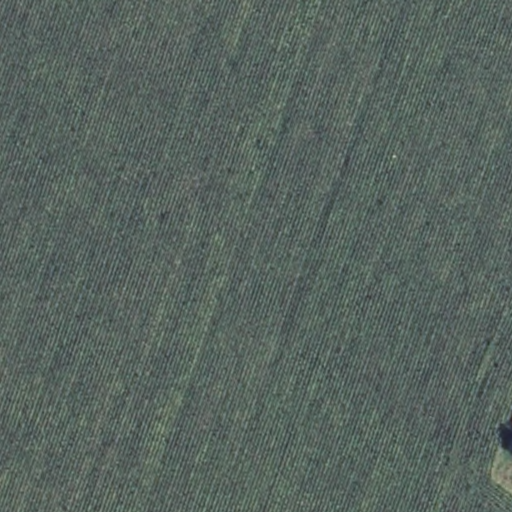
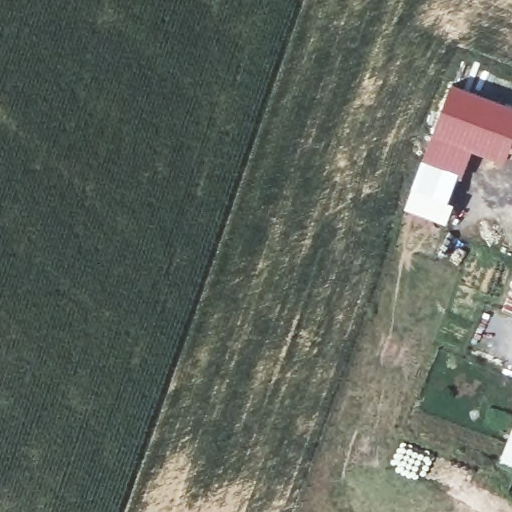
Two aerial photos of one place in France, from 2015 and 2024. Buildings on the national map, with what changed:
new [(512,105),(512,141),(505,160),(473,150),(463,175),(460,174),(422,159),(451,85),(512,105)]
new [(422,159),(460,174),(449,202),(454,204),(446,224),(404,208),(422,159)]
demolished [(512,425),(512,428),(511,428),(512,425)]

